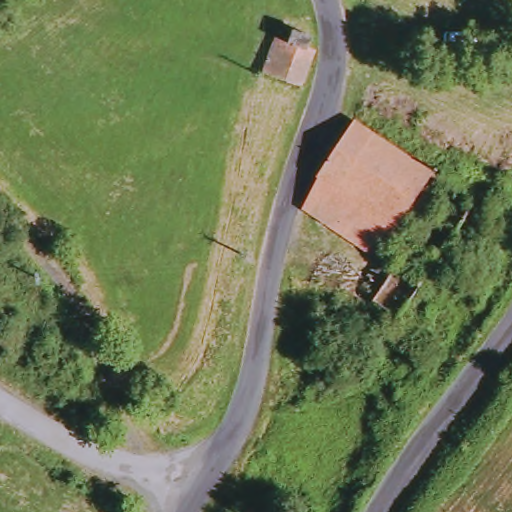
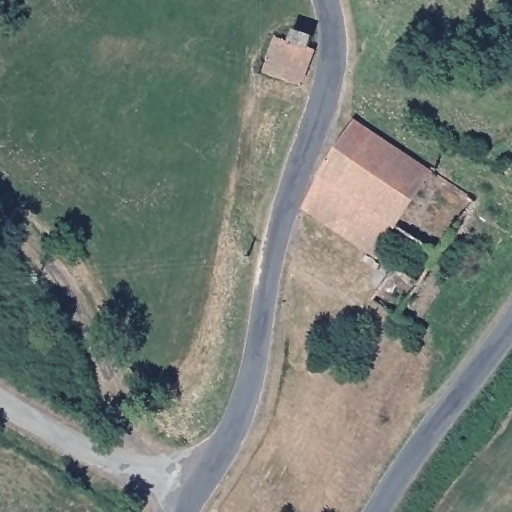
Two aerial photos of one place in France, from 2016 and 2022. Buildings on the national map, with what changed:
unchanged [(308,87),(268,76),(282,41),(295,45),(300,33),(316,40),(310,51),(320,55),(308,87)]
unchanged [(359,117),(440,164),(380,254),(307,209),(359,117)]

